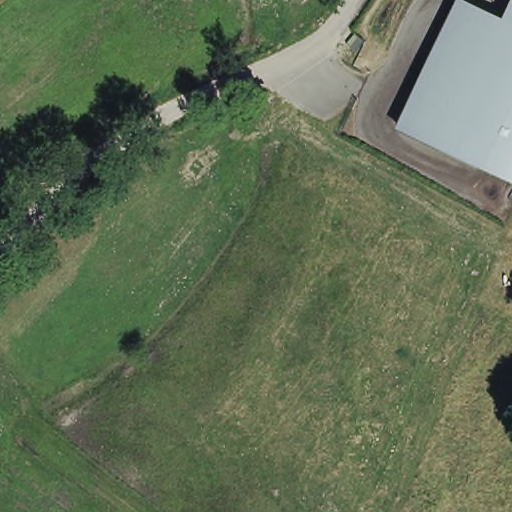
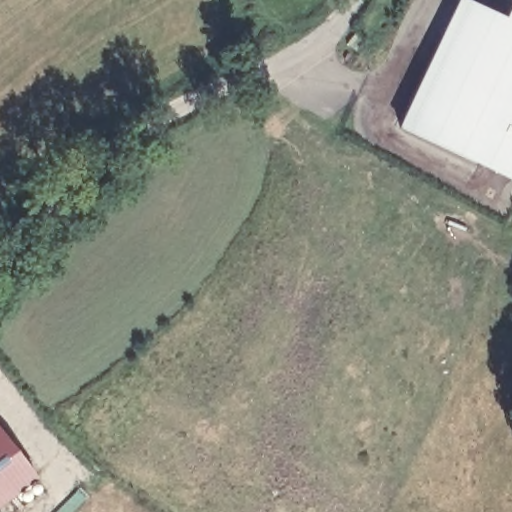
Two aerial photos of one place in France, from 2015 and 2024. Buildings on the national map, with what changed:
unchanged [(512,8),(512,185),(402,126),(460,0),(465,0),(506,20),(512,8)]
new [(39,479),(0,509),(0,428),(39,479)]

